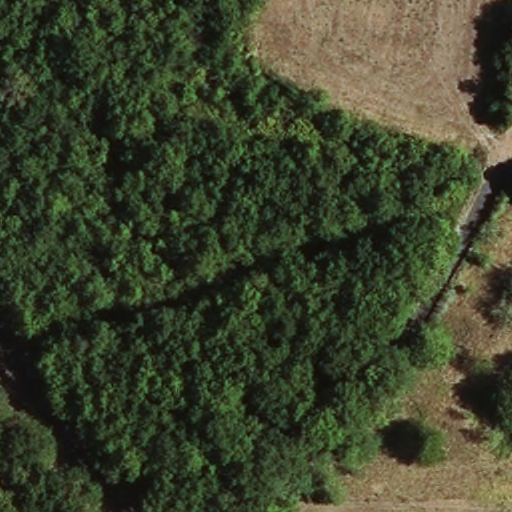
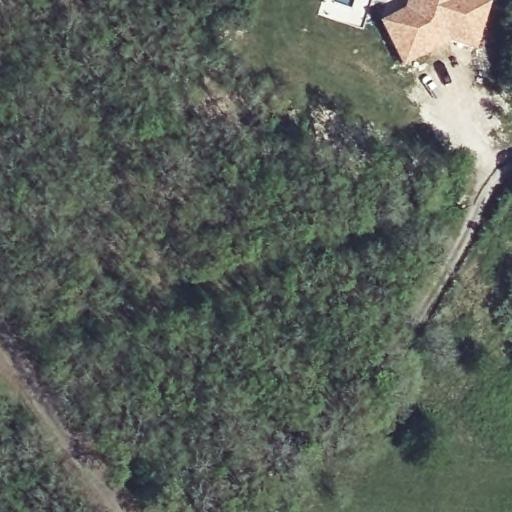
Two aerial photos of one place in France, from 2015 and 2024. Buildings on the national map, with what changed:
new [(400,64),(384,36),(377,23),(394,14),(407,7),(409,0),(472,0),(484,3),(471,47),(446,39),(426,50),(400,64)]

